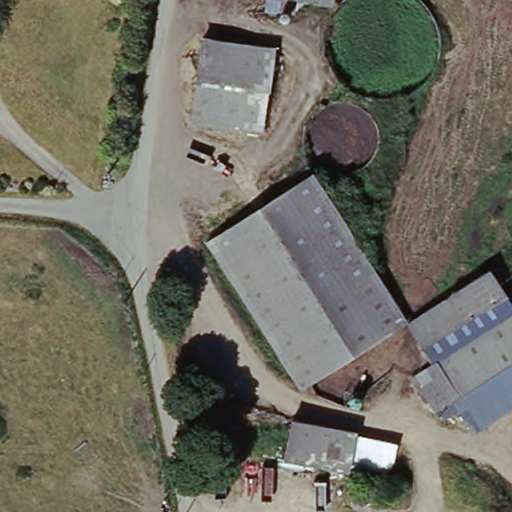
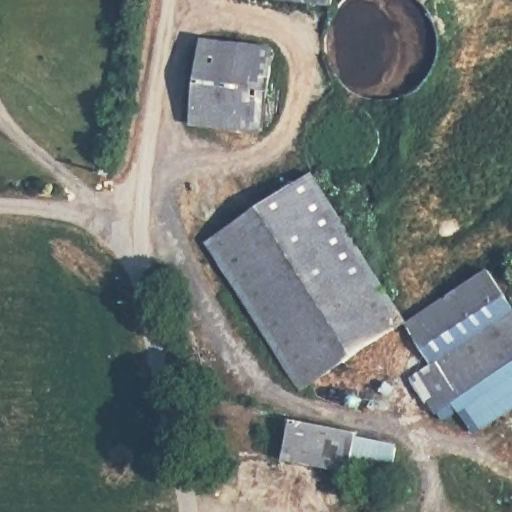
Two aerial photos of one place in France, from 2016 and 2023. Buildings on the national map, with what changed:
unchanged [(341,5),(313,2),(310,11),(303,9),(303,15),(287,11),(286,0),(341,0),(341,5)]
unchanged [(274,56),(265,130),(228,126),(191,122),(203,48),(236,51),(274,56)]
unchanged [(303,386),(212,237),(315,174),(408,320),(303,386)]
unchanged [(434,362),(408,320),(491,268),(493,266),(512,295),(512,311),(437,360),(434,362)]
unchanged [(437,360),(512,311),(512,400),(476,423),(464,403),(437,360)]
unchanged [(445,415),(417,372),(434,362),(437,360),(464,403),(445,415)]
unchanged [(355,425),(347,470),(283,460),(294,413),(355,425)]

